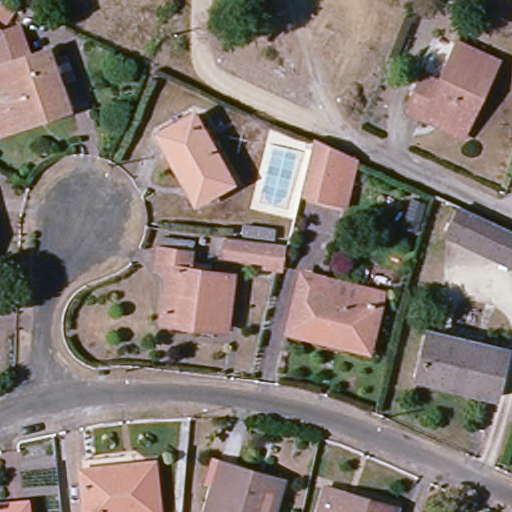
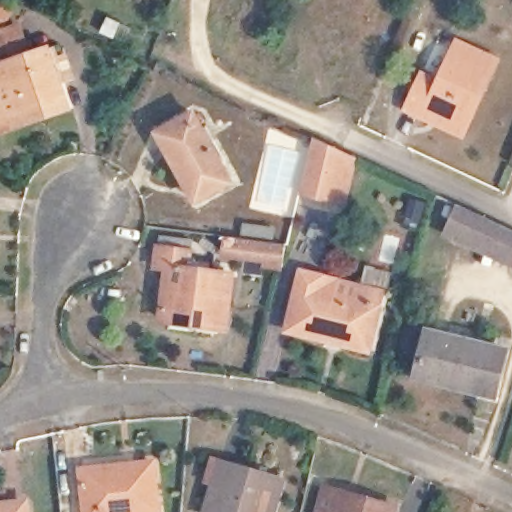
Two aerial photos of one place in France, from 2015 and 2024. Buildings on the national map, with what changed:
unchanged [(21,112),(0,120),(0,34),(8,31),(18,59),(36,53),(38,58),(45,56),(48,64),(56,61),(63,81),(49,86),(55,105),(23,116),(21,112)]
unchanged [(417,118),(398,107),(418,72),(434,81),(456,44),(495,66),(473,104),(453,139),(417,118)]
unchanged [(0,120),(21,112),(23,116),(55,105),(58,114),(0,136),(0,120)]
unchanged [(227,184),(192,204),(154,135),(188,117),(227,184)]
unchanged [(306,161),(308,155),(313,135),(347,150),(334,200),(300,191),(306,161)]
unchanged [(501,234),(512,239),(512,266),(509,273),(441,241),(454,212),(501,234)]
unchanged [(277,272),(259,269),(259,264),(217,258),(220,238),(237,241),(239,226),(271,230),(268,245),(283,247),(277,272)]
unchanged [(227,273),(219,324),(159,316),(166,265),(154,263),(156,246),(157,233),(188,238),(187,250),(185,267),(227,273)]
unchanged [(316,279),(313,292),(373,307),(363,348),(326,338),(325,343),(285,332),(299,275),(316,279)]
unchanged [(500,353),(489,397),(463,392),(464,387),(416,375),(425,335),(500,353)]
unchanged [(271,512),(204,512),(210,490),(202,487),(210,463),(248,474),(247,477),(263,482),(278,486),(271,512)]
unchanged [(154,512),(82,512),(78,474),(149,465),(154,512)]
unchanged [(390,510),(390,512),(318,512),(323,492),(390,510)]
unchanged [(0,508),(16,506),(17,512),(0,512),(0,508)]

